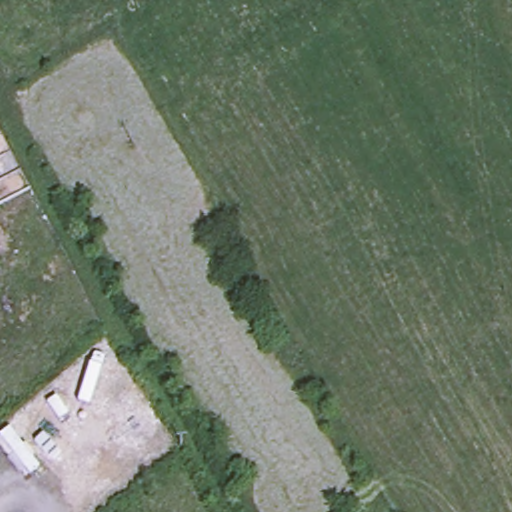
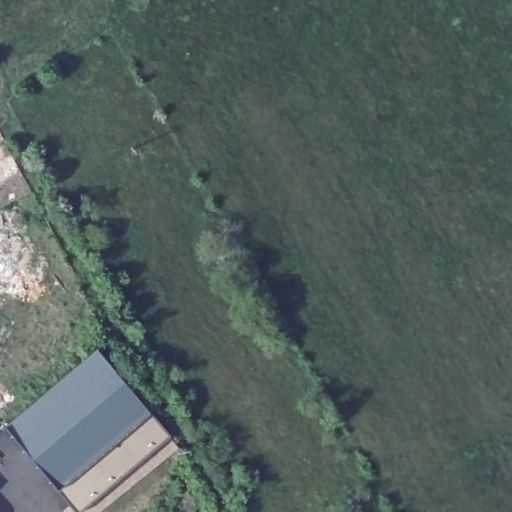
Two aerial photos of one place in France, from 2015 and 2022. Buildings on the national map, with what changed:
new [(97,347),(150,411),(151,411),(171,435),(80,512),(75,512),(4,426),(97,347)]

